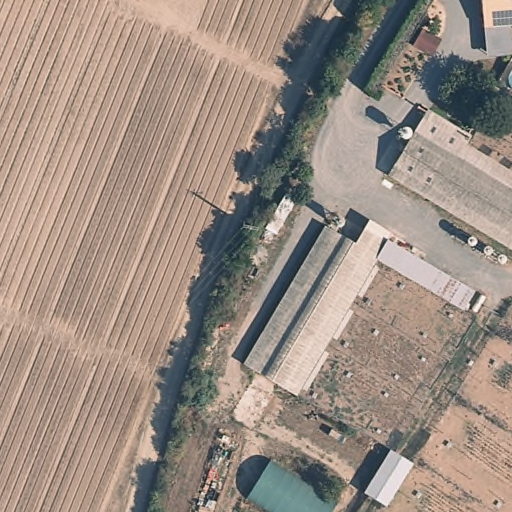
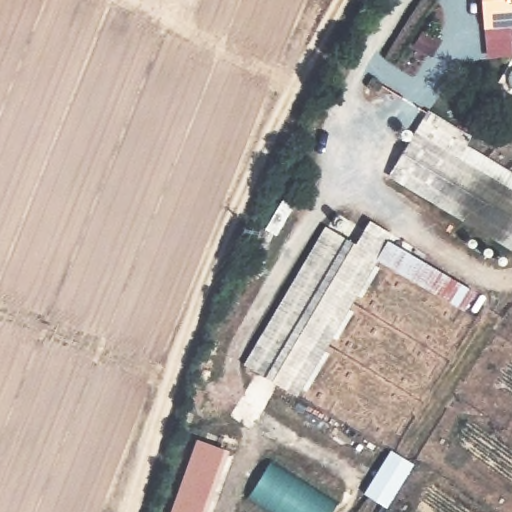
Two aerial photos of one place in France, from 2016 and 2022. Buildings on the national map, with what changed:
unchanged [(491,29),(488,0),(512,0),(512,26),(491,29)]
unchanged [(471,136),(460,153),(512,186),(512,248),(388,169),(427,110),(471,136)]
unchanged [(374,262),(299,396),(244,361),(327,225),(332,228),(339,215),(350,224),(344,232),(361,240),(371,223),(480,292),(465,314),(374,262)]
new [(195,438),(228,450),(206,512),(169,512),(195,438)]
unchanged [(395,445),(417,458),(393,497),(389,503),(369,488),(374,480),(395,445)]
unchanged [(333,512),(267,512),(248,501),(273,460),(341,497),(333,512)]

